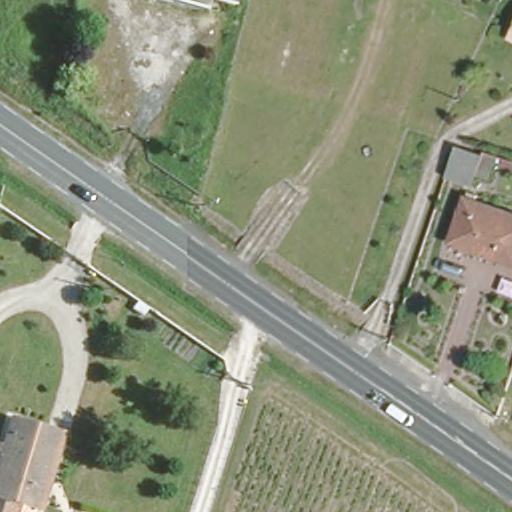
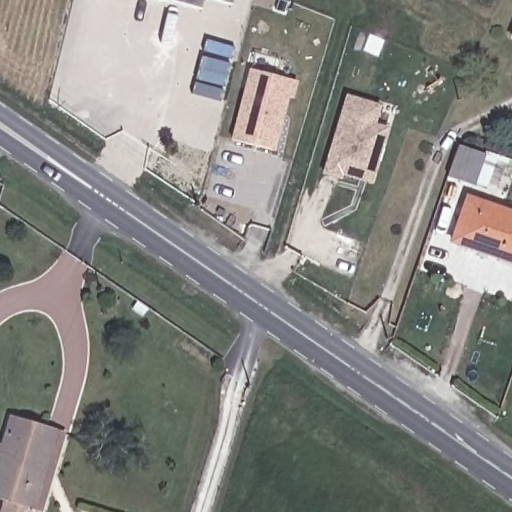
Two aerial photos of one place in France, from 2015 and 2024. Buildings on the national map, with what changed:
unchanged [(161,0),(198,0),(196,10),(161,0)]
unchanged [(217,0),(230,0),(229,3),(217,0)]
unchanged [(507,25),(512,14),(512,28),(507,25)]
new [(251,68),(297,79),(293,95),(288,94),(275,149),(234,139),(251,68)]
new [(350,96),(382,106),(377,125),(390,129),(373,182),(344,174),(343,177),(326,172),(350,96)]
unchanged [(444,172),(452,150),(455,141),(481,150),(471,180),(444,172)]
unchanged [(494,252),(450,235),(466,190),(512,207),(512,258),(494,252)]
unchanged [(27,501),(0,493),(0,436),(7,413),(49,425),(61,430),(39,505),(27,501)]

